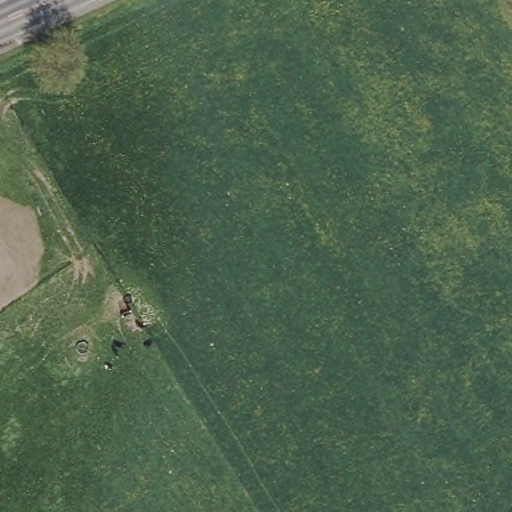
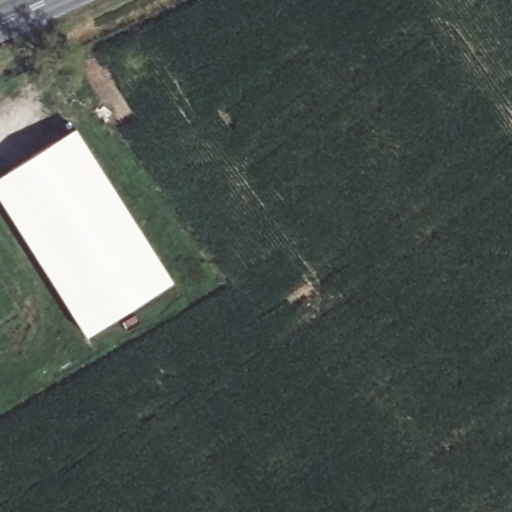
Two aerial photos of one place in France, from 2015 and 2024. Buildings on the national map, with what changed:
new [(74,131),(175,282),(91,338),(0,201),(0,179),(74,131)]

